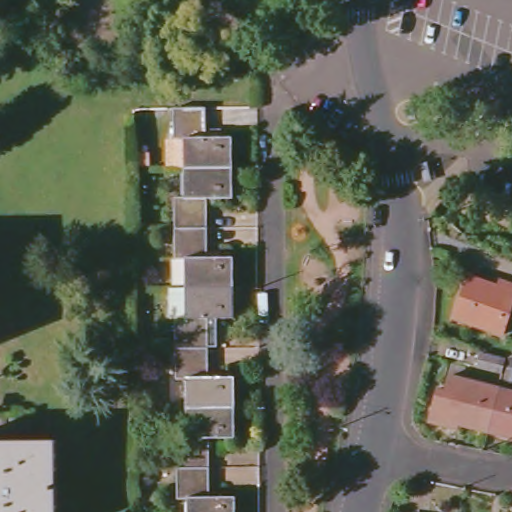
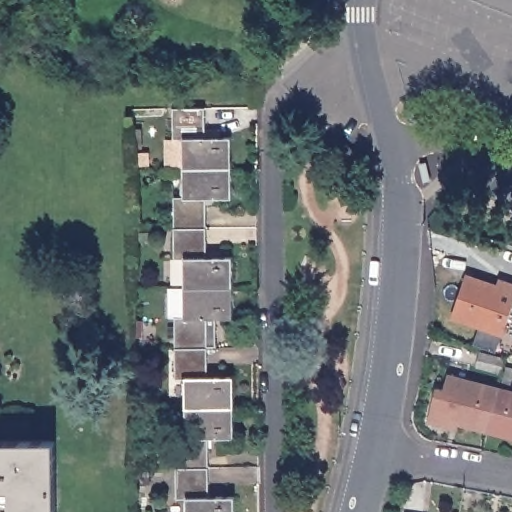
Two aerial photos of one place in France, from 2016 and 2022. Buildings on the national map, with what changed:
unchanged [(169,140),(170,109),(202,108),(202,131),(216,131),(216,137),(228,137),(228,168),(181,168),(181,141),(169,140)]
unchanged [(170,196),(180,196),(181,168),(228,168),(228,199),(202,199),(203,228),(170,228),(170,196)]
unchanged [(182,259),(171,259),(170,228),(203,228),(203,258),(228,257),(228,287),(182,288),(182,259)]
unchanged [(468,277),(504,288),(505,283),(512,285),(512,309),(504,335),(453,319),(468,277)]
unchanged [(228,319),(213,319),(213,348),(203,348),(172,348),(172,317),(182,317),(182,288),(228,287),(228,319)]
unchanged [(183,380),(172,380),(172,348),(203,348),(204,377),(230,377),(230,408),(182,408),(183,380)]
unchanged [(477,368),(480,351),(505,357),(500,373),(477,368)]
unchanged [(488,430),(450,420),(448,426),(428,421),(437,387),(444,389),(448,374),(499,387),(488,430)]
unchanged [(512,391),(512,436),(488,430),(499,387),(512,391)]
unchanged [(172,436),(182,436),(182,408),(230,408),(231,438),(205,438),(204,467),(172,467),(172,436)]
unchanged [(50,441),(50,512),(0,512),(0,441),(50,441)]
unchanged [(173,499),(172,467),(204,467),(204,497),(230,497),(230,512),(183,512),(183,499),(173,499)]

